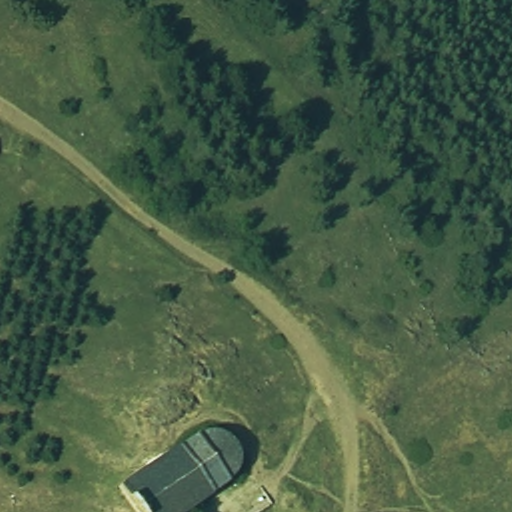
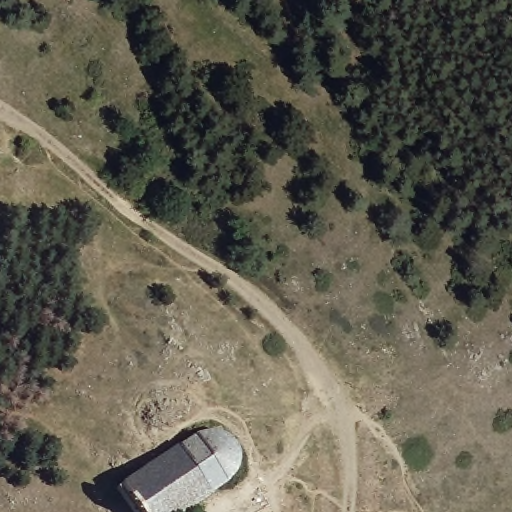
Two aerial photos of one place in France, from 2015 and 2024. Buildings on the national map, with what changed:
unchanged [(195,432),(209,430),(224,431),(236,442),(242,457),(242,472),(232,485),(222,493),(194,512),(136,512),(117,485),(195,432)]

